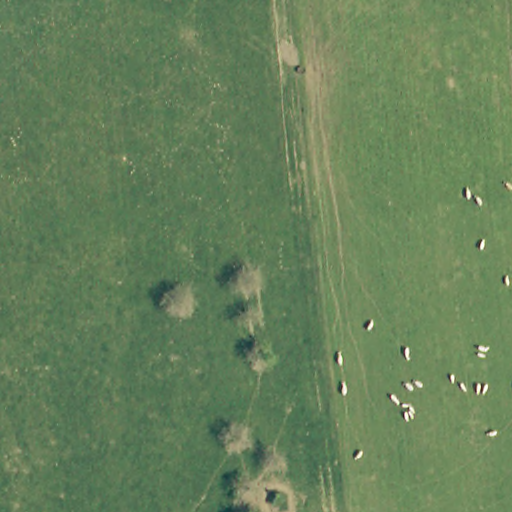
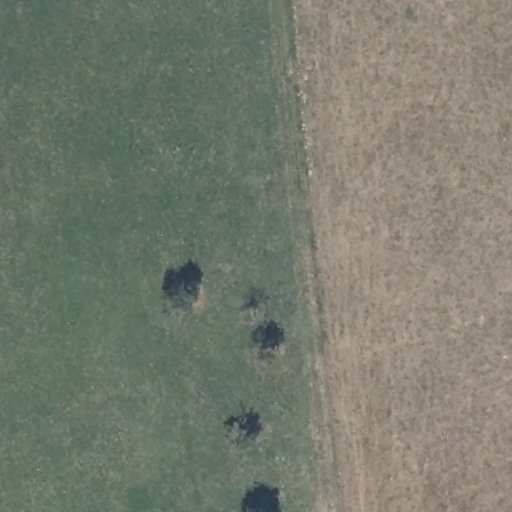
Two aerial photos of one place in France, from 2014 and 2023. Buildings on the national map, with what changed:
[]

